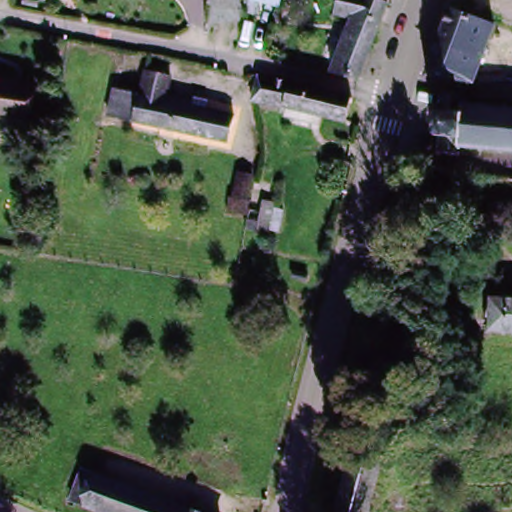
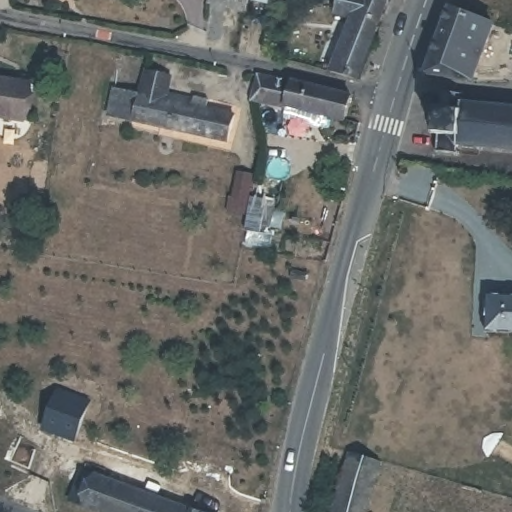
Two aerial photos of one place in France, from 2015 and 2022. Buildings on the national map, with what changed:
unchanged [(45,2),(35,0),(45,0),(45,2)]
unchanged [(243,8),(243,14),(210,6),(210,0),(245,0),(243,8)]
unchanged [(276,19),(245,12),(248,0),(281,0),(276,19)]
unchanged [(332,71),(350,19),(335,14),(338,0),(383,0),(386,1),(380,16),(357,79),(332,71)]
unchanged [(450,13),(493,27),(472,86),(427,77),(450,13)]
unchanged [(108,89),(137,95),(142,70),(166,75),(162,93),(188,99),(187,106),(228,115),(222,140),(103,116),(108,89)]
unchanged [(31,122),(0,118),(0,80),(37,87),(31,122)]
unchanged [(253,106),(258,80),(294,87),(350,100),(344,125),(292,112),(253,106)]
unchanged [(466,108),(512,113),(512,154),(462,148),(461,158),(441,156),(443,139),(437,137),(439,112),(445,113),(447,96),(467,99),(466,108)]
unchanged [(491,336),(493,298),(512,300),(512,337),(491,336)]
new [(91,401),(80,443),(44,432),(59,388),(91,401)]
unchanged [(381,461),(368,512),(334,512),(349,452),(381,461)]
unchanged [(199,512),(104,512),(71,500),(82,469),(199,512)]

